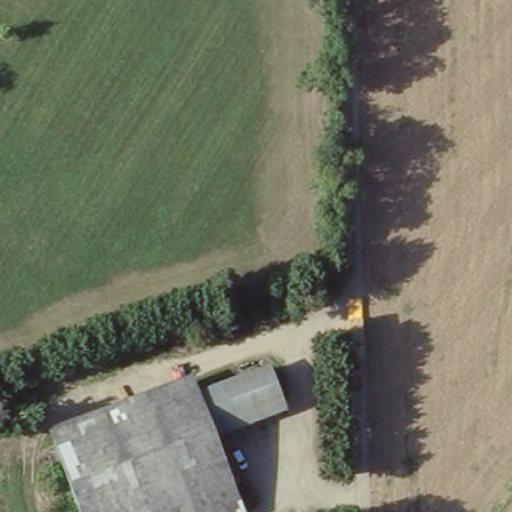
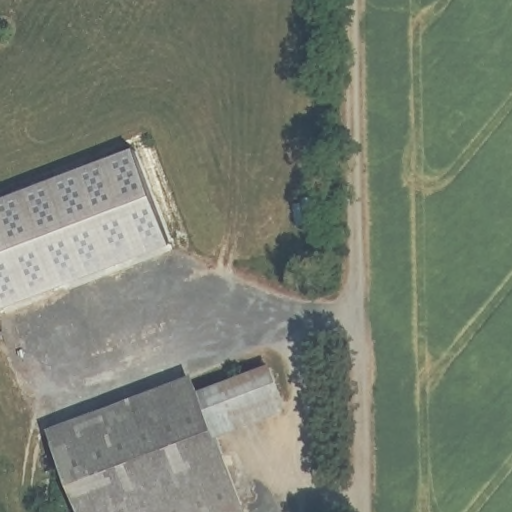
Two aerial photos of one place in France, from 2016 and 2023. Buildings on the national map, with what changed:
new [(0,303),(0,201),(134,150),(171,248),(2,310),(0,303)]
unchanged [(191,373),(200,387),(270,360),(286,408),(219,436),(245,512),(82,512),(48,430),(191,373)]

